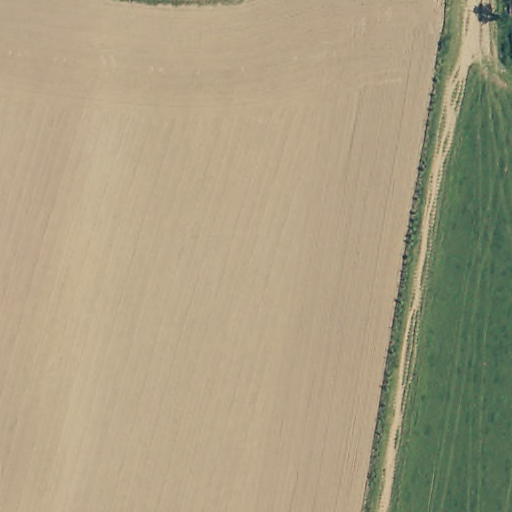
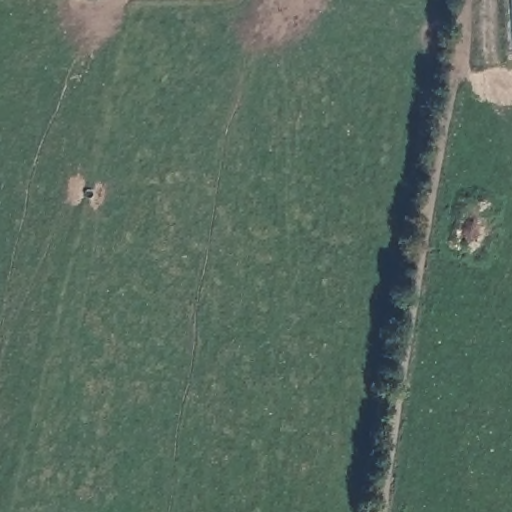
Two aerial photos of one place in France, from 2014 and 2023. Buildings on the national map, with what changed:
[]

